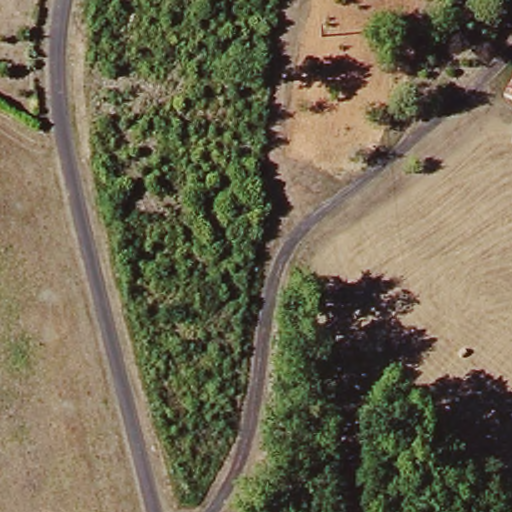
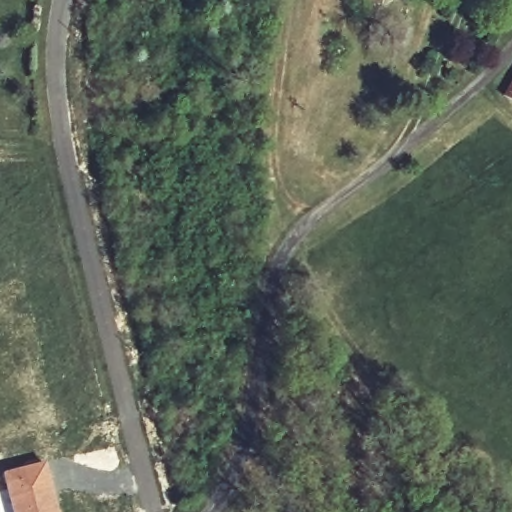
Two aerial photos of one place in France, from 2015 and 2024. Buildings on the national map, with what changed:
unchanged [(512,79),(512,101),(502,96),(512,79)]
new [(60,512),(11,512),(1,472),(46,460),(60,512)]

